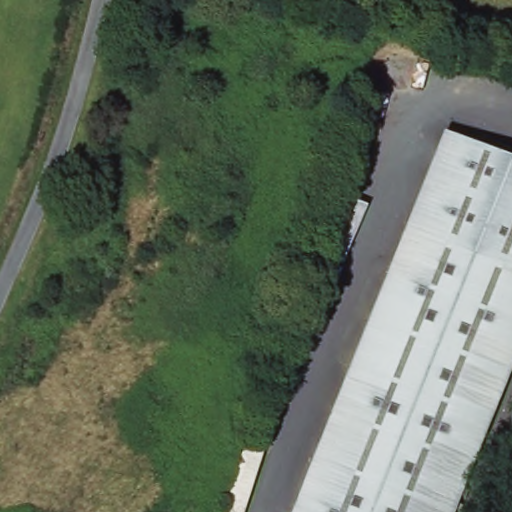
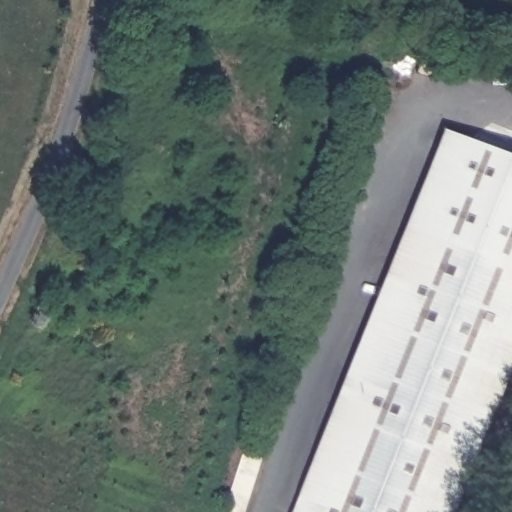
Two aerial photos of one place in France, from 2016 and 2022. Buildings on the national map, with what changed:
unchanged [(456,130),(512,154),(512,385),(475,477),(460,512),(299,512),(456,130)]

